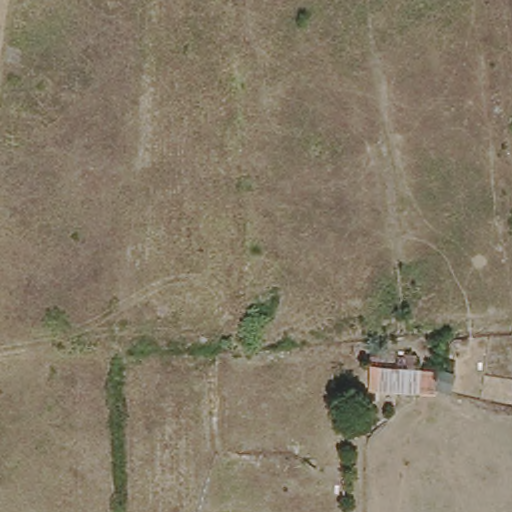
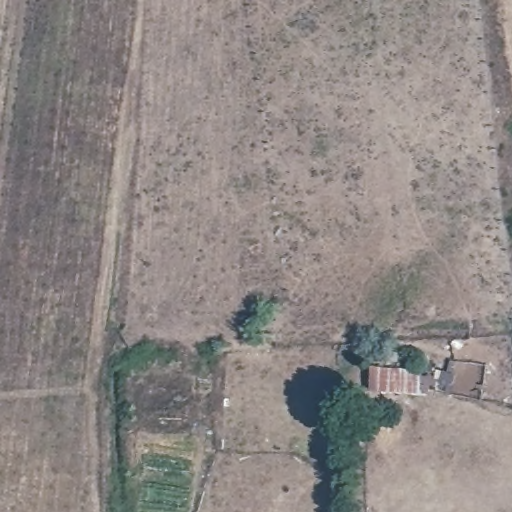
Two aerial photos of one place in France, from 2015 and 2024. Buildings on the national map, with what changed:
unchanged [(374,351),(413,350),(415,366),(437,366),(437,391),(375,394),(374,351)]

